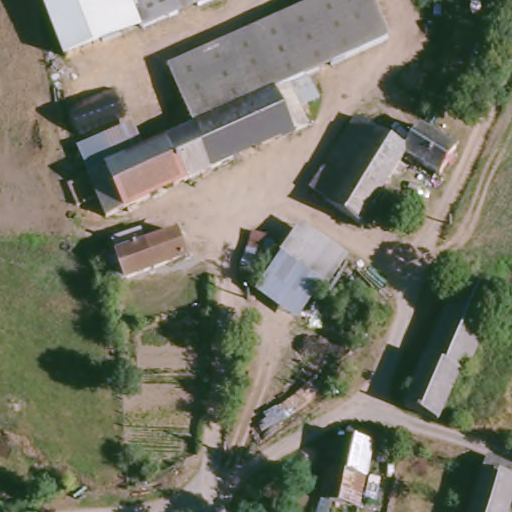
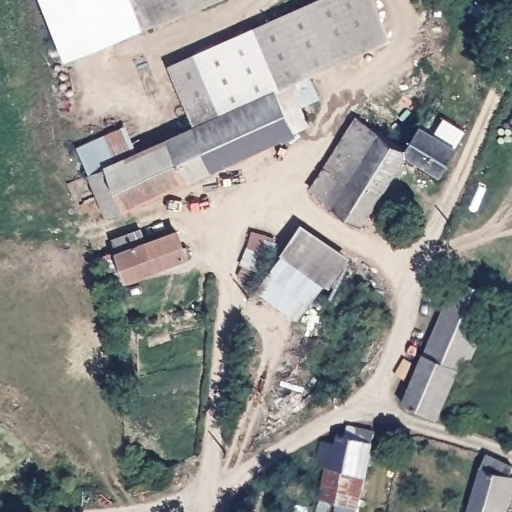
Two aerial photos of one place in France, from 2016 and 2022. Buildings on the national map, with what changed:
unchanged [(76,62),(49,0),(223,0),(76,62)]
unchanged [(173,72),(323,0),(369,0),(390,41),(302,84),(241,112),(198,131),(173,72)]
unchanged [(302,84),(320,129),(260,155),(241,112),(302,84)]
unchanged [(260,155),(196,185),(177,142),(198,131),(241,112),(260,155)]
unchanged [(415,152),(413,157),(368,231),(318,194),(367,121),(415,152)]
unchanged [(415,152),(429,132),(464,153),(451,180),(413,157),(415,152)]
unchanged [(116,170),(177,142),(196,185),(135,214),(118,223),(97,178),(116,170)]
unchanged [(333,287),(323,284),(299,320),(258,293),(305,223),(350,255),(333,287)]
unchanged [(121,246),(147,228),(153,244),(184,231),(193,257),(133,281),(122,252),(121,246)]
unchanged [(413,401),(462,283),(460,280),(463,275),(488,283),(487,287),(503,295),(474,364),(468,361),(445,416),(413,401)]
unchanged [(334,468),(325,466),(330,440),(342,443),(342,435),(350,436),(352,427),(380,433),(376,448),(365,509),(348,503),(328,500),(332,480),(334,468)]
unchanged [(504,512),(483,504),(496,461),(512,468),(512,512),(504,512)]
unchanged [(504,512),(480,512),(483,504),(504,512)]

